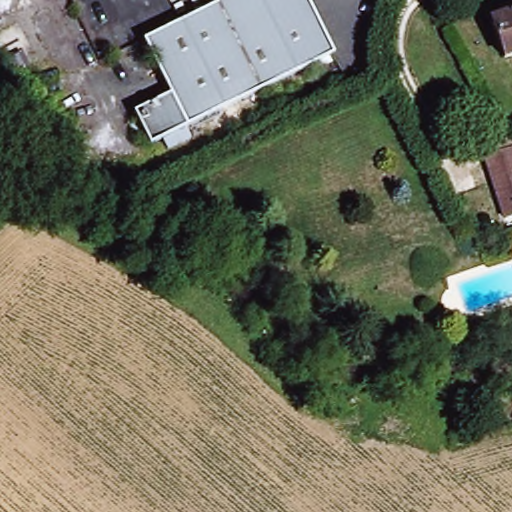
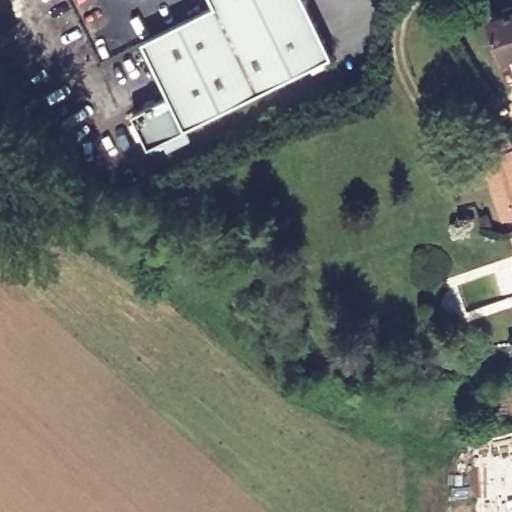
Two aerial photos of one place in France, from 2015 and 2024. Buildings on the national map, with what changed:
unchanged [(208,0),(303,0),(333,58),(150,151),(133,118),(169,100),(141,45),(213,9),(208,0)]
unchanged [(496,19),(512,14),(512,58),(510,59),(496,19)]
unchanged [(484,160),(512,150),(512,219),(506,221),(501,208),(484,160)]

